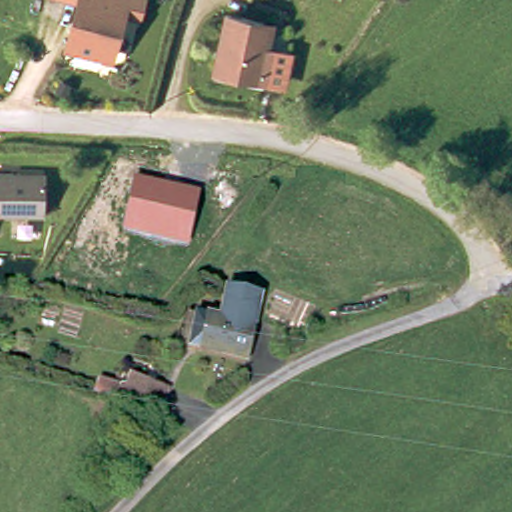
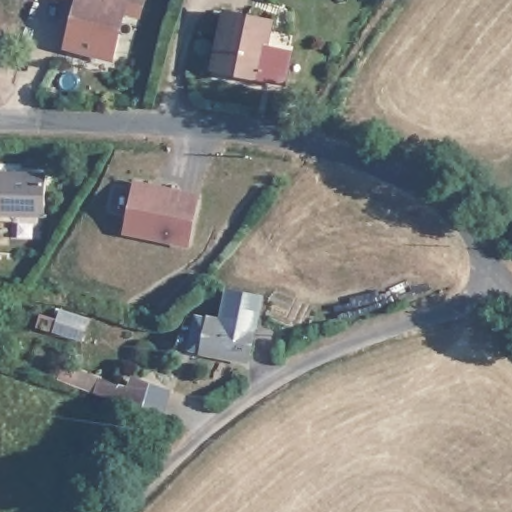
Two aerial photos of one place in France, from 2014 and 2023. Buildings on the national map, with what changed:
unchanged [(134,11),(119,6),(107,55),(66,43),(71,22),(75,8),(76,0),(136,0),(134,11)]
unchanged [(266,87),(257,85),(214,77),(222,19),(265,26),(261,55),(270,56),(266,87)]
unchanged [(0,211),(0,167),(16,168),(44,169),(43,178),(42,212),(0,211)]
unchanged [(200,193),(189,248),(122,234),(134,181),(200,193)]
unchanged [(234,293),(254,299),(263,304),(256,330),(248,362),(208,351),(195,347),(203,315),(215,318),(226,321),(234,293)]
unchanged [(171,392),(169,399),(163,418),(128,406),(100,396),(103,387),(104,383),(133,392),(137,380),(171,392)]

